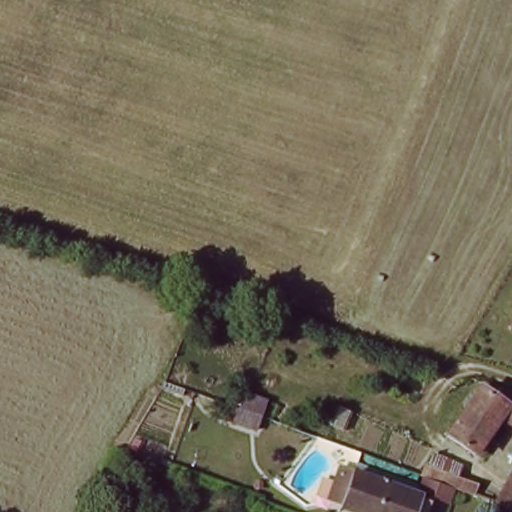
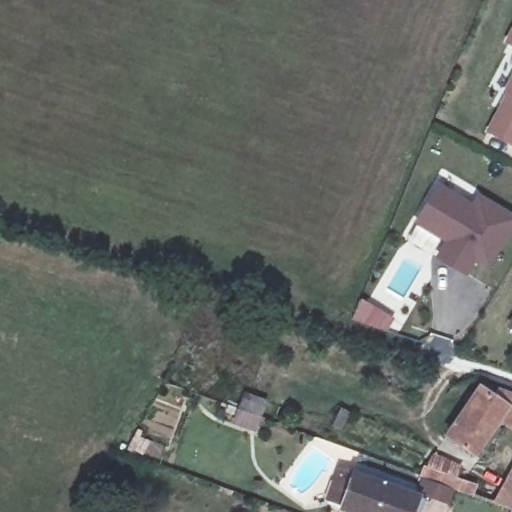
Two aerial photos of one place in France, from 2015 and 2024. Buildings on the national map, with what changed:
new [(508,46),(512,38),(512,48),(508,46)]
new [(506,97),(512,85),(512,147),(490,135),(501,114),(510,98),(506,97)]
new [(417,226),(439,189),(457,199),(474,209),(480,200),(512,219),(512,230),(489,269),(476,261),(467,277),(439,261),(449,245),(443,242),(417,226)]
unchanged [(511,326),(512,324),(512,326),(511,326)]
unchanged [(503,424),(480,458),(450,439),(487,387),(512,395),(512,427),(503,424)]
unchanged [(228,429),(233,413),(238,397),(260,404),(253,420),(248,436),(228,429)]
unchanged [(415,481),(420,465),(470,483),(465,498),(415,481)]
unchanged [(493,501),(512,471),(512,508),(493,501)]
unchanged [(417,498),(412,512),(340,512),(353,476),(417,498)]

